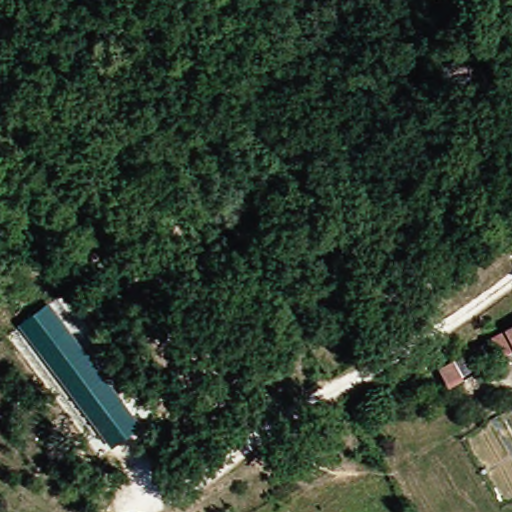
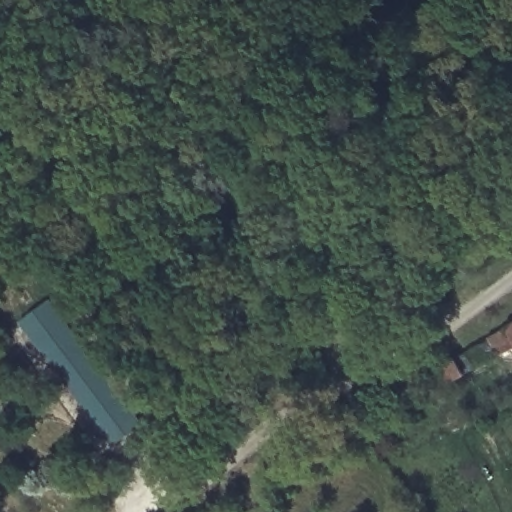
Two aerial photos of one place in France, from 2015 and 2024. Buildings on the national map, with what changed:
unchanged [(32,323),(54,306),(57,303),(131,398),(149,423),(121,445),(110,431),(29,326),(32,323)]
unchanged [(512,345),(495,354),(486,340),(512,325),(512,345)]
unchanged [(455,359),(454,362),(461,377),(446,384),(438,367),(433,354),(449,346),(455,359)]

